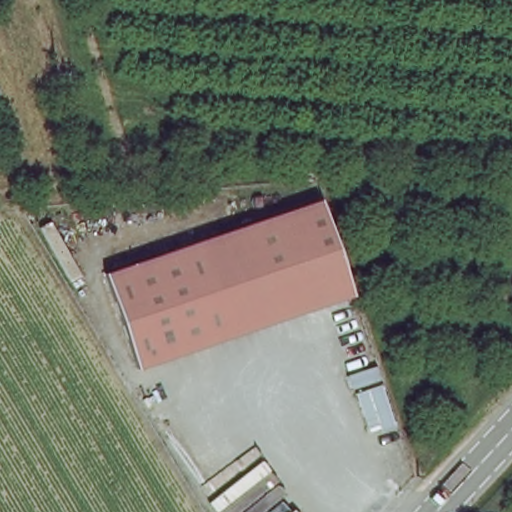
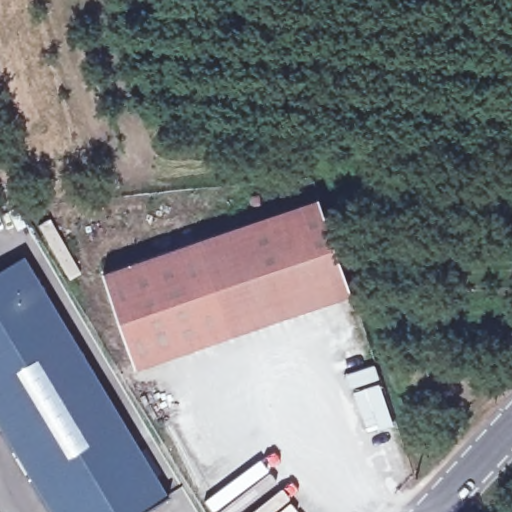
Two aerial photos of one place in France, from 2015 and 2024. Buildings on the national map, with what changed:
unchanged [(98,275),(320,197),(352,295),(143,365),(136,368),(98,275)]
new [(48,218),(80,274),(68,281),(35,225),(48,218)]
new [(166,495),(142,512),(46,512),(0,435),(0,270),(22,256),(166,495)]
unchanged [(371,373),(376,386),(348,395),(343,382),(371,373)]
unchanged [(378,392),(393,433),(381,437),(377,428),(365,432),(353,400),(378,392)]

